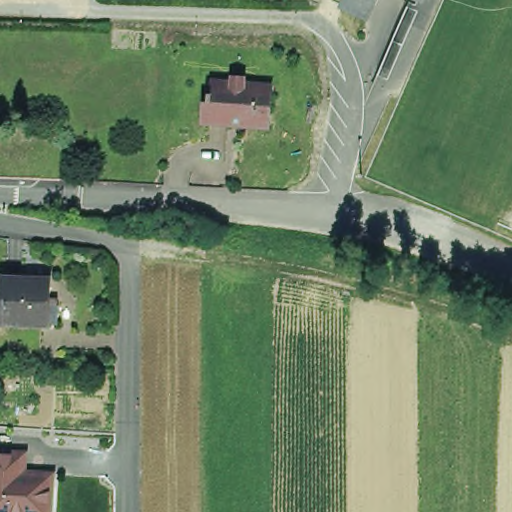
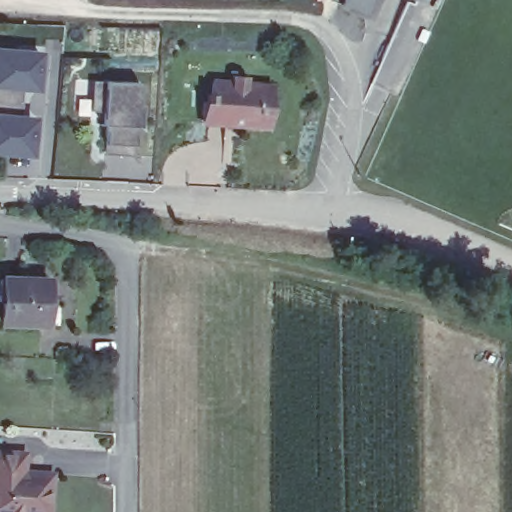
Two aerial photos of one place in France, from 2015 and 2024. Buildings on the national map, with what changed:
unchanged [(374,0),(366,19),(344,11),(347,0),(374,0)]
new [(38,54),(35,86),(23,85),(19,120),(33,121),(29,154),(0,152),(0,50),(38,54)]
new [(139,84),(134,158),(104,155),(106,124),(101,124),(102,111),(89,111),(91,80),(139,84)]
unchanged [(198,130),(199,106),(203,106),(206,98),(209,98),(209,88),(226,89),(226,81),(243,83),(243,90),(269,92),(266,131),(245,131),(238,138),(233,133),(206,131),(198,130)]
unchanged [(54,299),(53,322),(2,321),(3,298),(0,298),(0,274),(48,274),(48,299),(54,299)]
unchanged [(43,478),(59,479),(57,512),(0,512),(0,453),(31,456),(29,479),(38,482),(43,478)]

